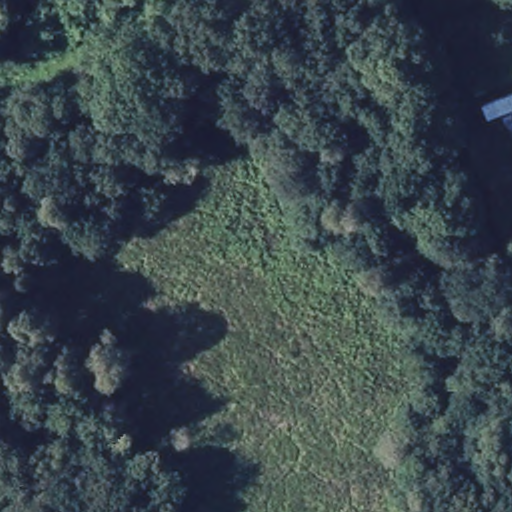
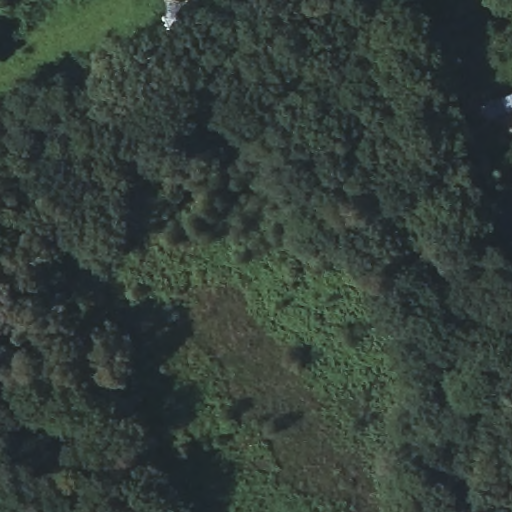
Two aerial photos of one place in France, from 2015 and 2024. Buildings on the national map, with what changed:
unchanged [(512,94),(512,114),(493,121),(486,105),(512,94)]

